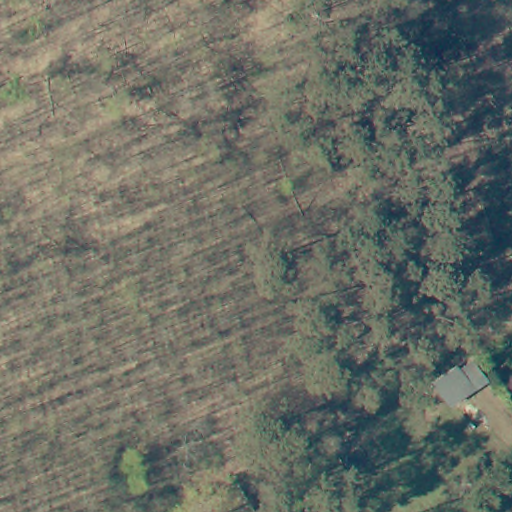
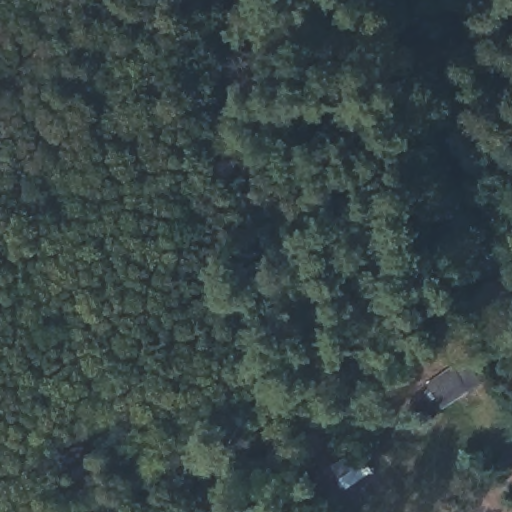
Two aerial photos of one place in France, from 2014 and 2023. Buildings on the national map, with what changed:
unchanged [(228,493),(241,512),(190,512),(196,509),(228,493)]

